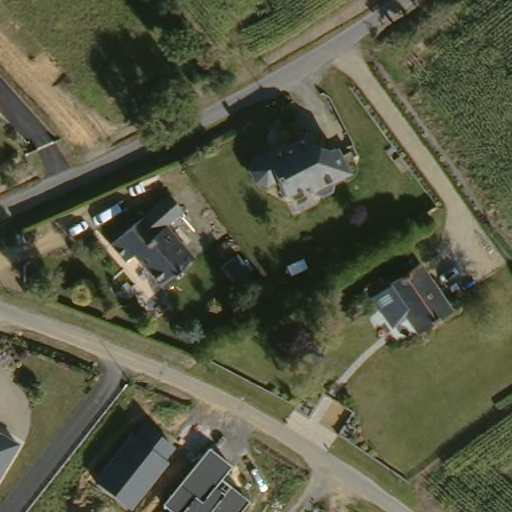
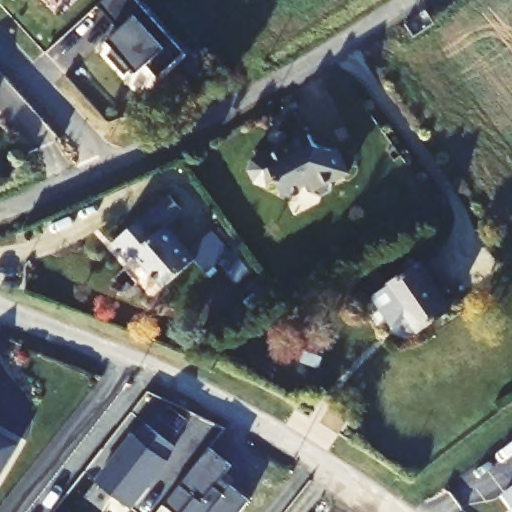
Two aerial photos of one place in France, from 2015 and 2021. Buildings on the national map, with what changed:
new [(136,0),(185,54),(157,79),(142,63),(124,79),(107,60),(115,53),(106,43),(119,32),(97,8),(106,0),(136,0)]
unchanged [(272,150),(273,153),(310,135),(315,146),(331,151),(336,149),(348,174),(331,183),(333,186),(331,191),(321,197),(315,195),(314,192),(311,193),(307,184),(284,196),(276,180),(266,185),(255,181),(250,170),(253,159),(272,150)]
unchanged [(132,259),(124,266),(111,249),(169,201),(184,218),(168,231),(194,264),(159,293),(132,259)]
unchanged [(377,299),(388,291),(386,289),(417,264),(453,306),(420,331),(410,339),(377,299)]
unchanged [(165,459),(169,463),(130,510),(93,481),(141,422),(175,446),(165,459)]
unchanged [(23,447),(0,483),(0,433),(23,447)]
unchanged [(230,465),(220,479),(249,502),(241,512),(172,512),(163,504),(208,448),(230,465)]
new [(512,508),(511,508),(502,494),(512,487),(512,508)]

